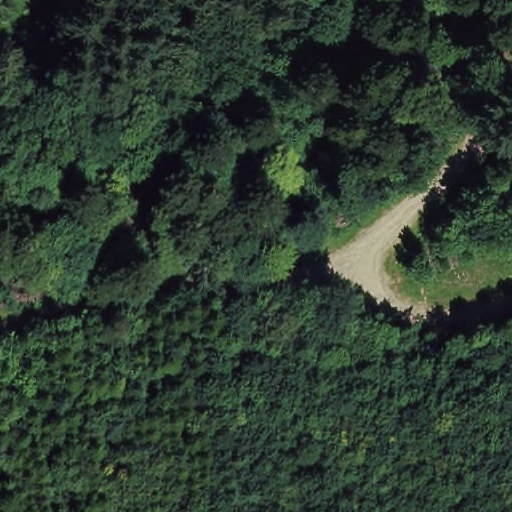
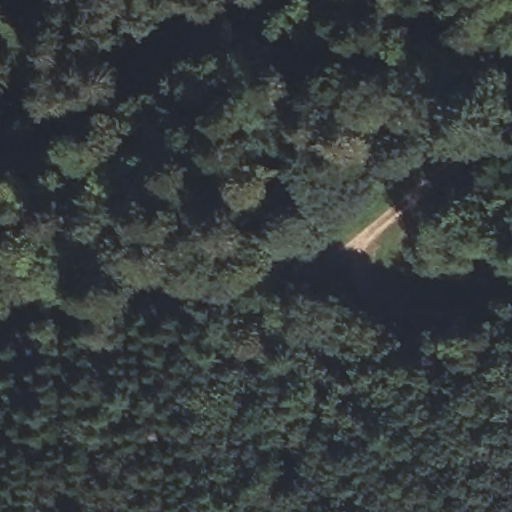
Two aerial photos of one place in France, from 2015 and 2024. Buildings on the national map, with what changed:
unchanged [(483,262),(484,286),(439,287),(440,263),(483,262)]

